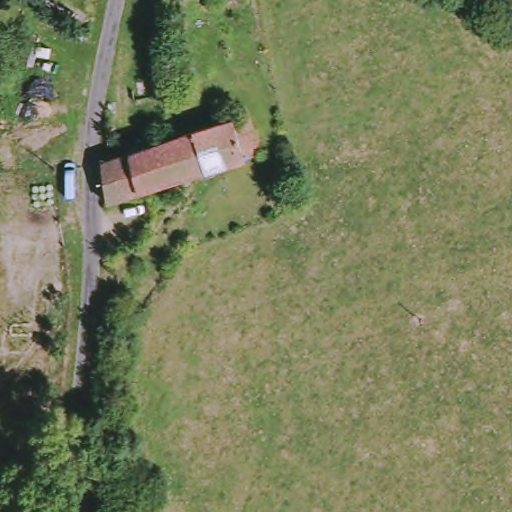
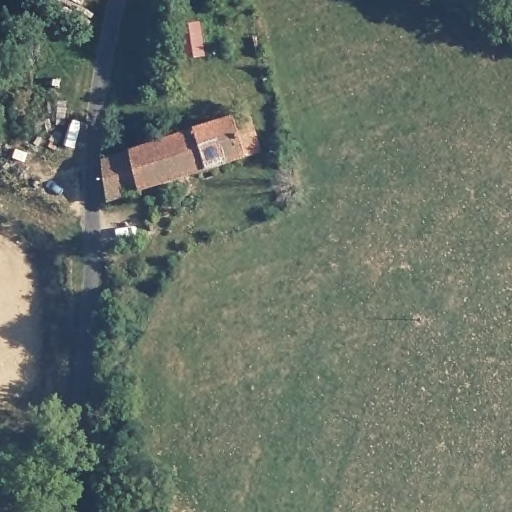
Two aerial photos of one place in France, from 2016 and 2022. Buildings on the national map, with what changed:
unchanged [(193,131),(241,115),(243,119),(257,114),(260,124),(263,123),(269,148),(129,192),(114,197),(109,168),(110,158),(193,131)]

